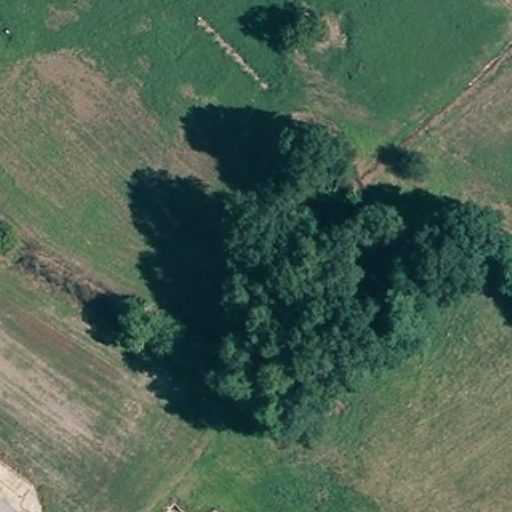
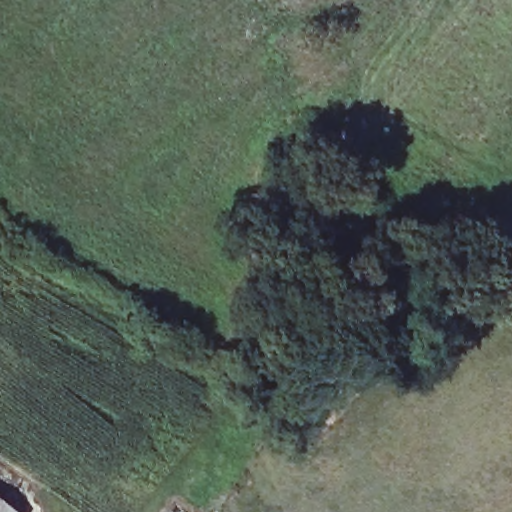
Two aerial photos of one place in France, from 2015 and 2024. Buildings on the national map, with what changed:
unchanged [(15,512),(0,512),(0,500),(15,512)]

